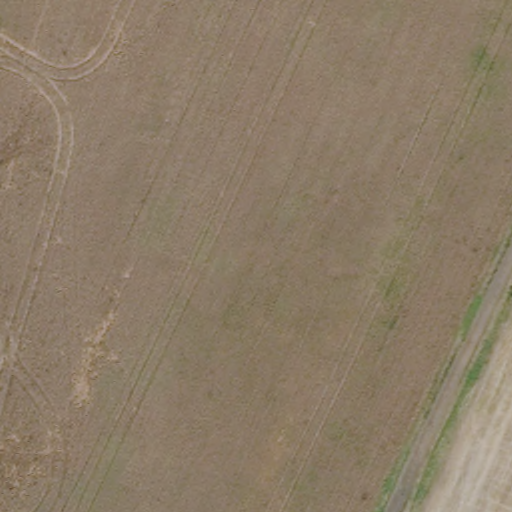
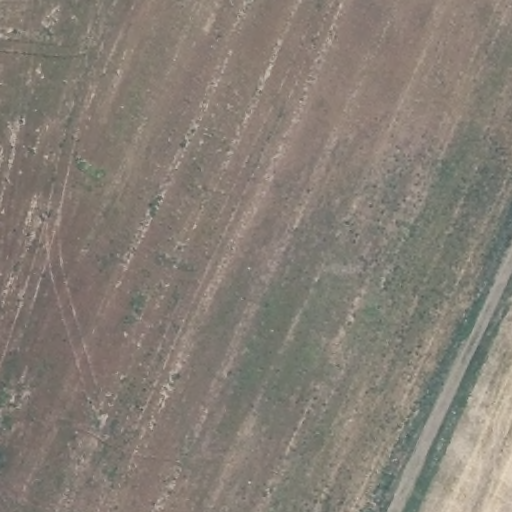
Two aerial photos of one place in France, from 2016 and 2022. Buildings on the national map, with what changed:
[]

